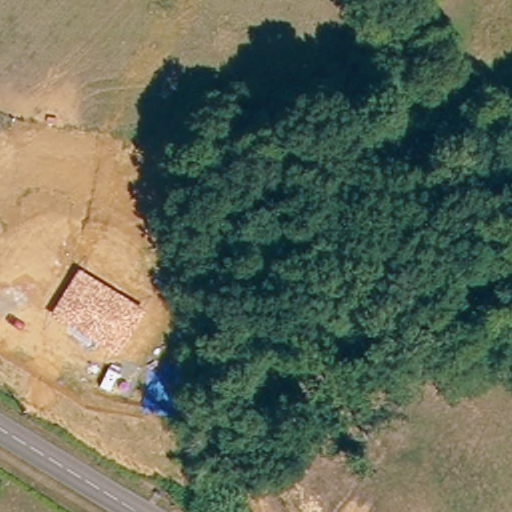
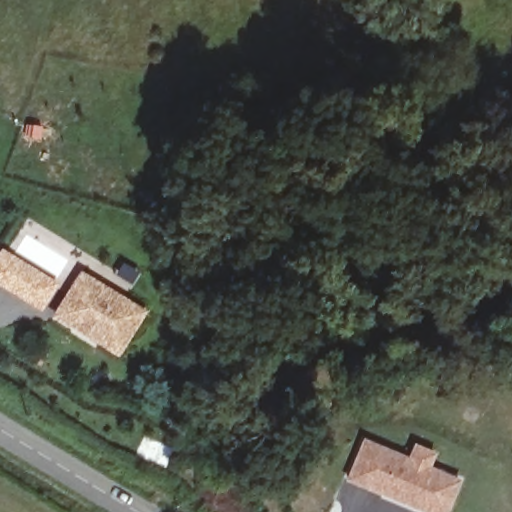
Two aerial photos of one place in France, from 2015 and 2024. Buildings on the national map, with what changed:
new [(59,283),(41,311),(0,287),(0,249),(59,283)]
unchanged [(145,314),(119,355),(54,313),(79,270),(145,314)]
new [(355,484),(372,446),(446,480),(431,512),(416,512),(398,504),(393,501),(355,484)]

